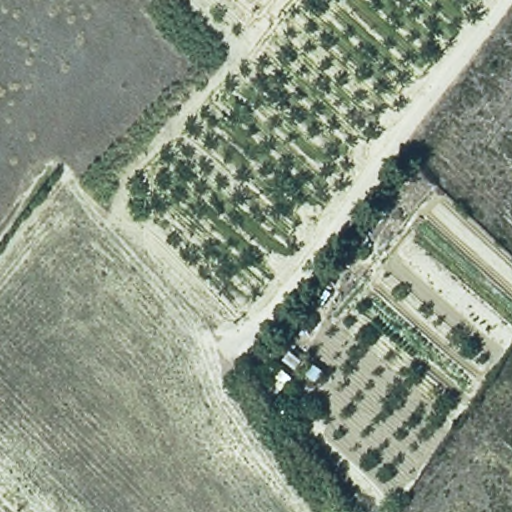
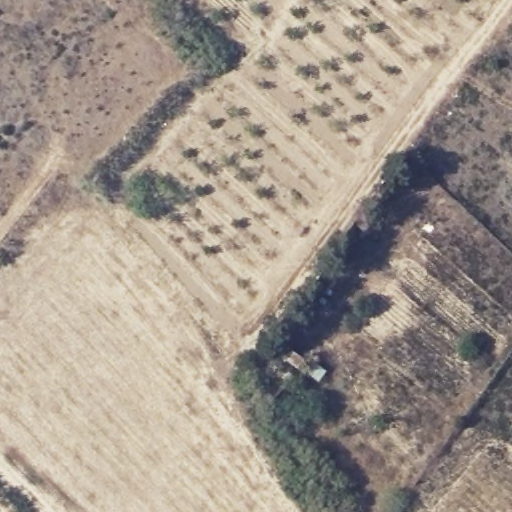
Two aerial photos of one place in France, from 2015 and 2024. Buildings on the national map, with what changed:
unchanged [(295,347),(326,370),(315,384),(282,359),(295,347)]

